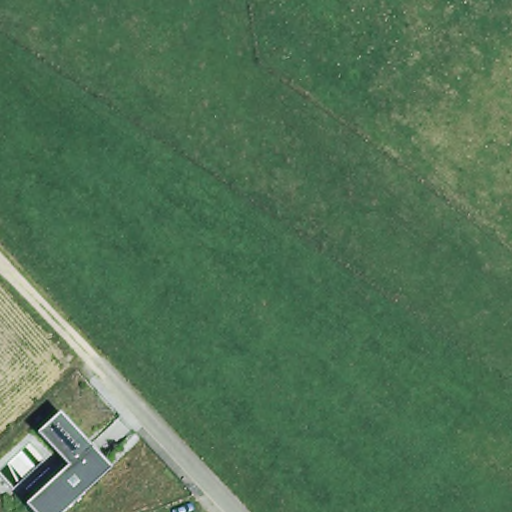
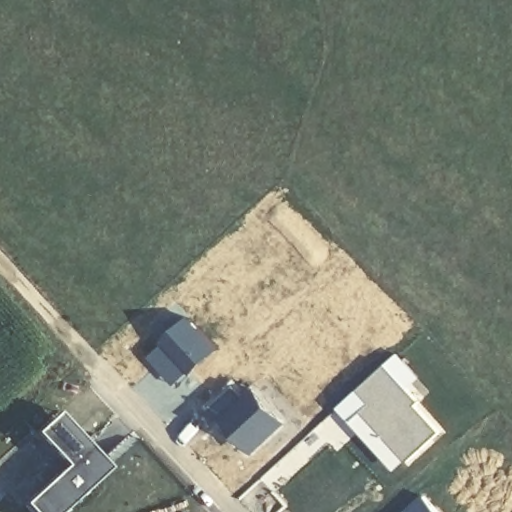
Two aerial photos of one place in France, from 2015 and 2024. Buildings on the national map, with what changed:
new [(172,328),(190,313),(219,348),(174,385),(146,355),(172,328)]
new [(397,351),(420,377),(410,387),(422,399),(419,402),(444,431),(395,473),(358,432),(350,438),(328,415),(397,351)]
new [(254,386),(269,402),(233,433),(218,416),(254,386)]
new [(269,402),(287,422),(251,454),(233,433),(269,402)]
unchanged [(62,512),(32,512),(25,505),(67,462),(34,431),(57,410),(110,467),(62,512)]
new [(328,415),(350,438),(336,452),(328,442),(287,481),(274,466),(328,415)]
new [(442,512),(401,512),(424,492),(442,512)]

